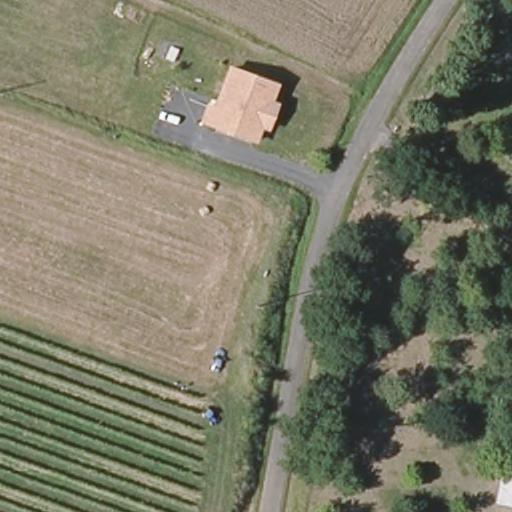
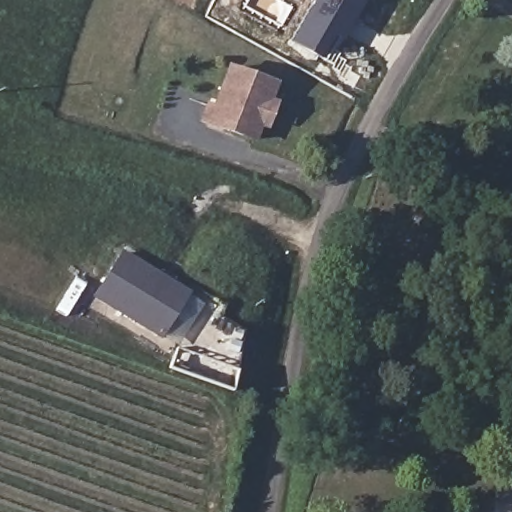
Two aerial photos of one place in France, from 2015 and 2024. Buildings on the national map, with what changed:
new [(341,39),(335,36),(321,60),(289,41),(312,1),(309,0),(363,0),(341,39)]
unchanged [(264,122),(257,120),(252,135),(201,117),(205,103),(221,107),(223,100),(214,97),(224,66),(270,81),(264,99),(270,100),(264,122)]
new [(162,340),(91,298),(120,250),(189,293),(162,340)]

